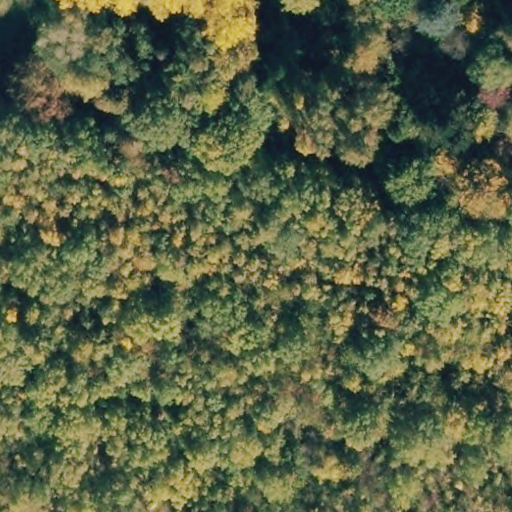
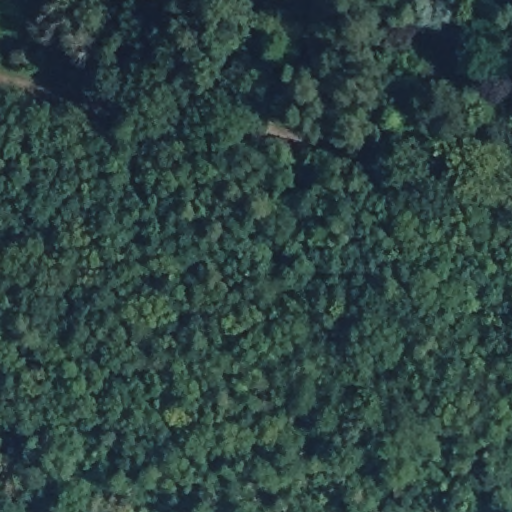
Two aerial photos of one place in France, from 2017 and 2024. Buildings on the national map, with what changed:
unchanged [(304,31),(333,29),(335,51),(310,54),(304,31)]

